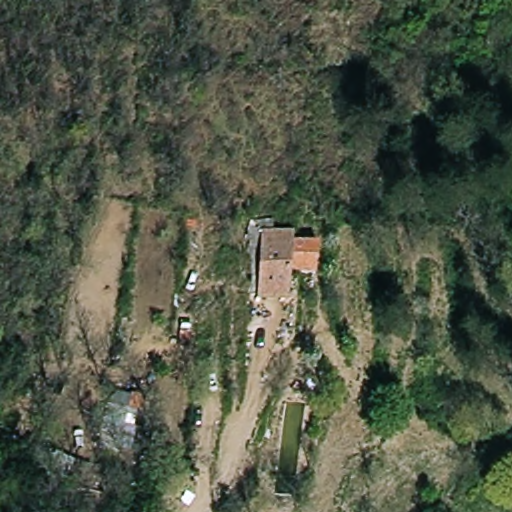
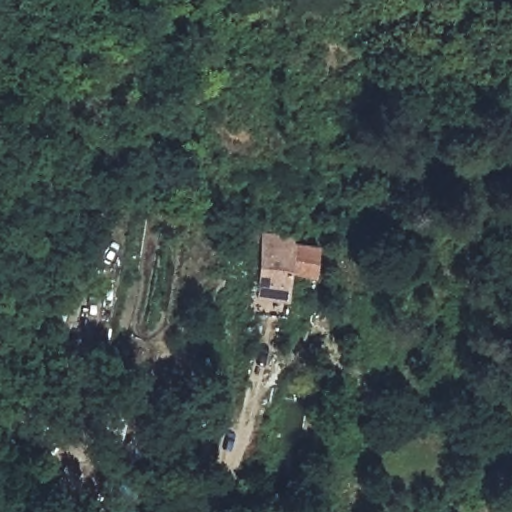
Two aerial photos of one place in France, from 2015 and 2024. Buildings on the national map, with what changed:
unchanged [(256,300),(259,231),(292,232),(291,242),(317,244),(314,277),(289,275),(287,301),(256,300)]

